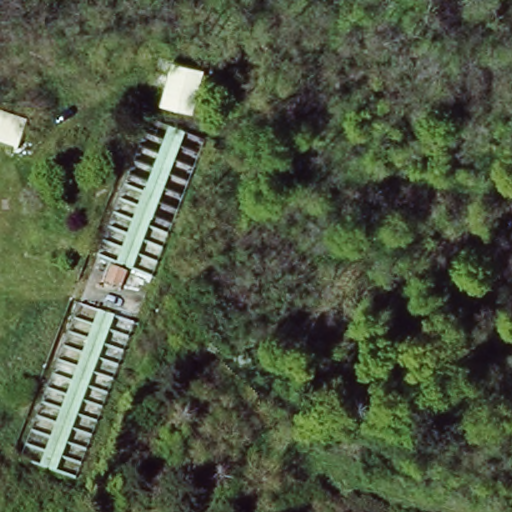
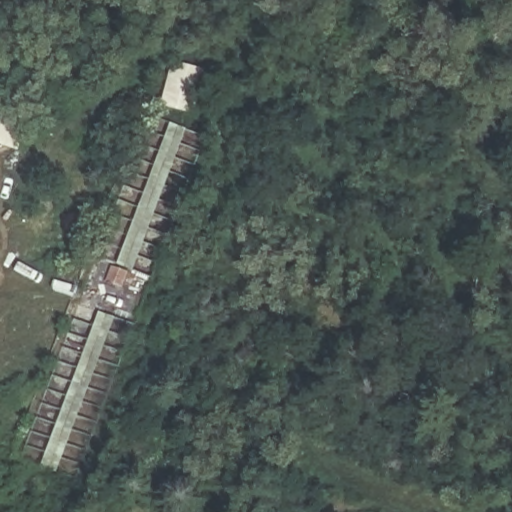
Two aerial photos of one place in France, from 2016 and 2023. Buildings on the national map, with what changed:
unchanged [(202,71),(194,117),(160,111),(168,64),(202,71)]
unchanged [(21,153),(0,147),(0,115),(30,124),(21,153)]
unchanged [(170,127),(185,134),(135,270),(117,263),(170,127)]
unchanged [(99,320),(112,325),(55,475),(40,469),(99,320)]

